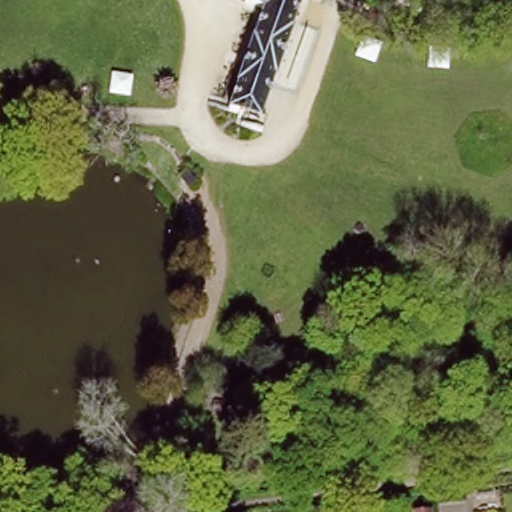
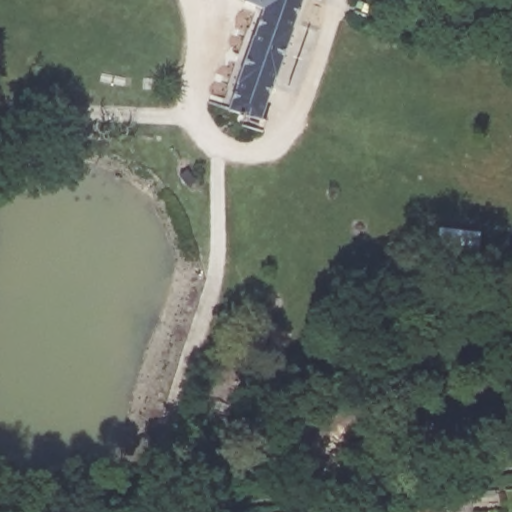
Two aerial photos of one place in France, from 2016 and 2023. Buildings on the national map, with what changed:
unchanged [(244,129),(249,115),(229,109),(265,9),(244,2),(245,0),(306,0),(266,120),(273,122),(267,137),(244,129)]
unchanged [(220,346),(248,353),(229,415),(204,407),(220,346)]

